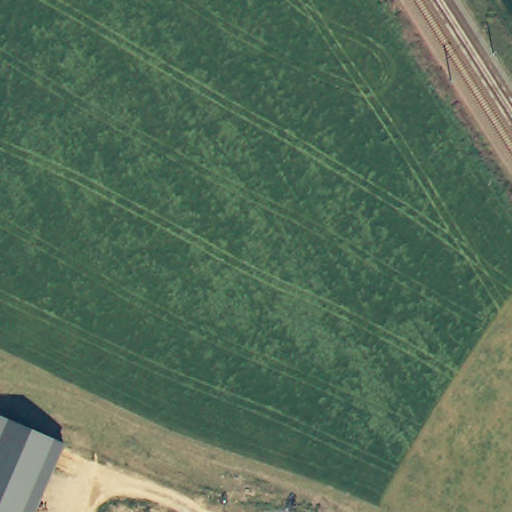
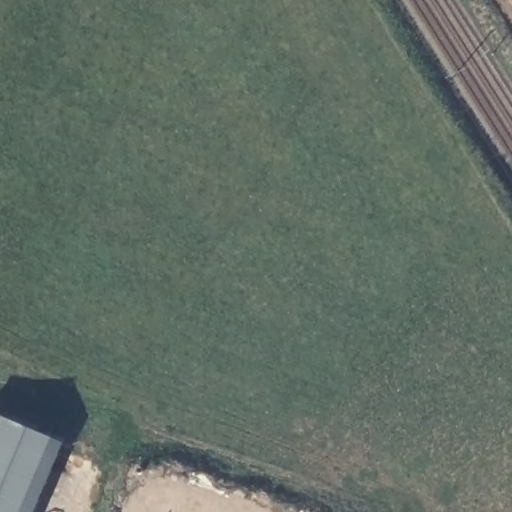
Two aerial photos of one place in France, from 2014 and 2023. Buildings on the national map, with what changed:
unchanged [(35,512),(0,512),(0,416),(65,445),(35,512)]

